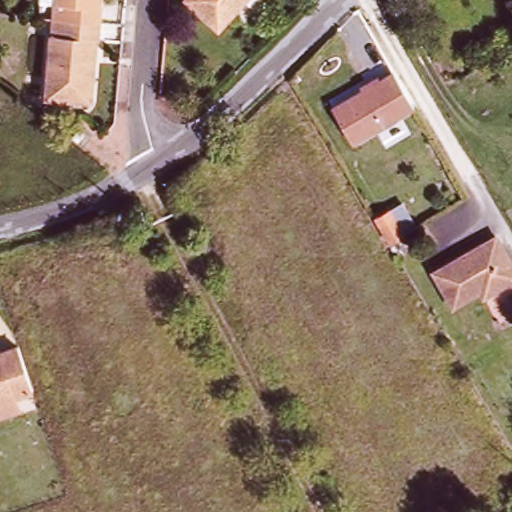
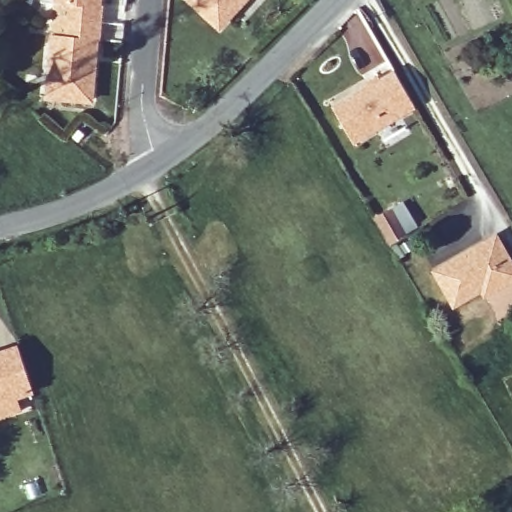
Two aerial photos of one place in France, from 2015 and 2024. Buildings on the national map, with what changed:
unchanged [(56,0),(97,0),(97,2),(104,2),(102,21),(55,17),(56,0)]
unchanged [(222,31),(194,3),(196,0),(251,0),(222,31)]
unchanged [(102,21),(101,33),(96,33),(89,99),(48,97),(55,17),(102,21)]
unchanged [(412,113),(354,146),(333,111),(392,78),(412,113)]
unchanged [(386,207),(398,229),(383,238),(371,216),(386,207)]
unchanged [(512,272),(512,285),(488,298),(484,291),(453,307),(433,273),(493,239),(512,272)]
unchanged [(0,350),(16,344),(32,388),(12,396),(17,408),(0,414),(0,350)]

